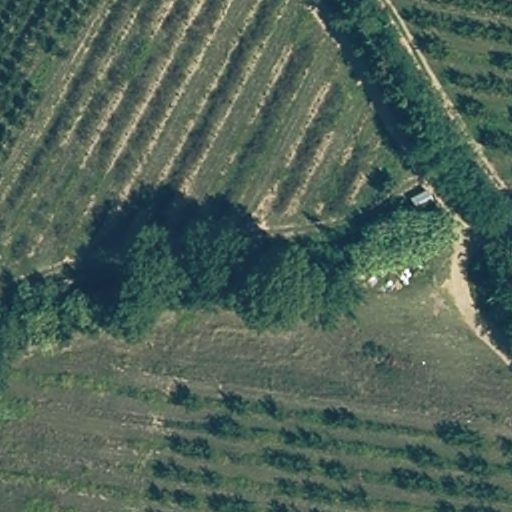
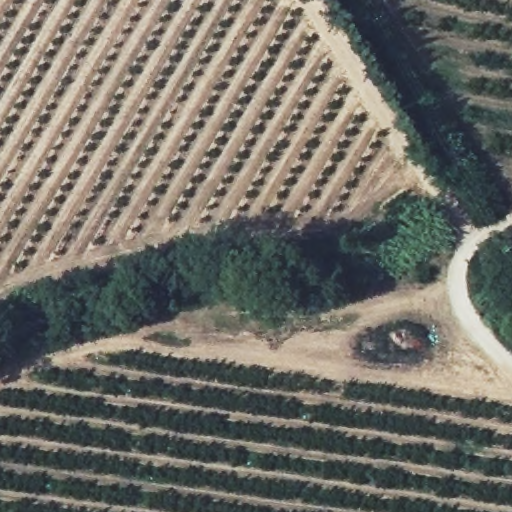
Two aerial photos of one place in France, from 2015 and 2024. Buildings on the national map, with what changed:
unchanged [(415,196),(435,194),(437,212),(417,214),(415,196)]

